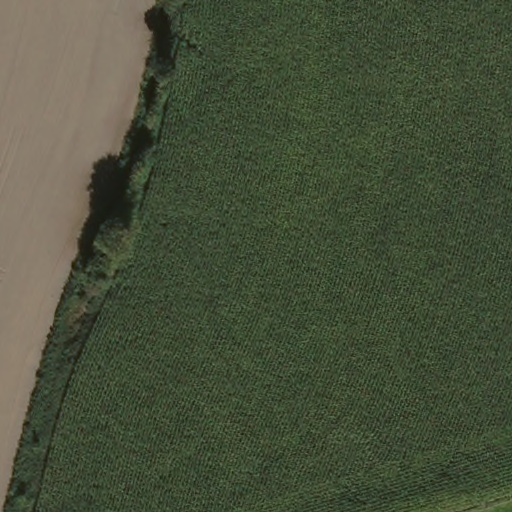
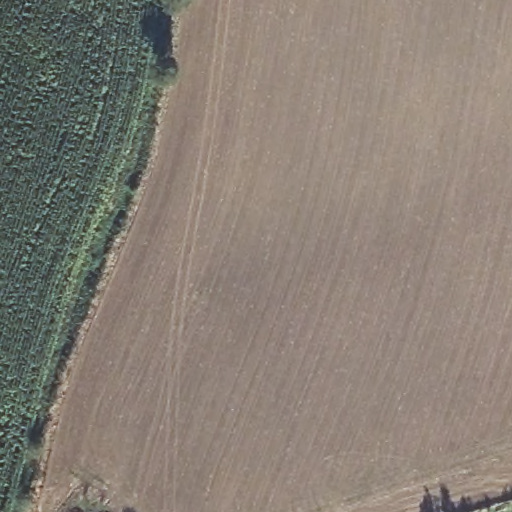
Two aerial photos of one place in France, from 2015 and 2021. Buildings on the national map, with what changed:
[]

